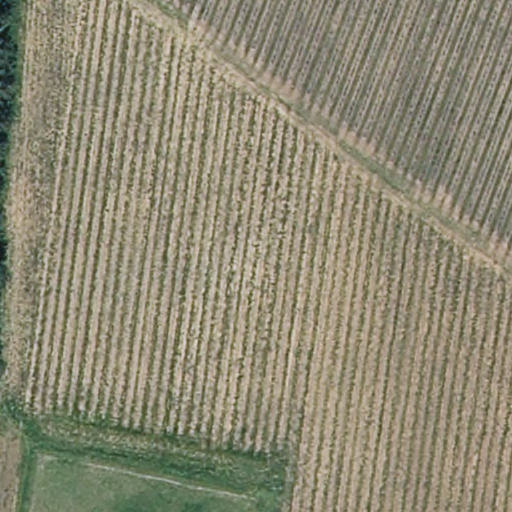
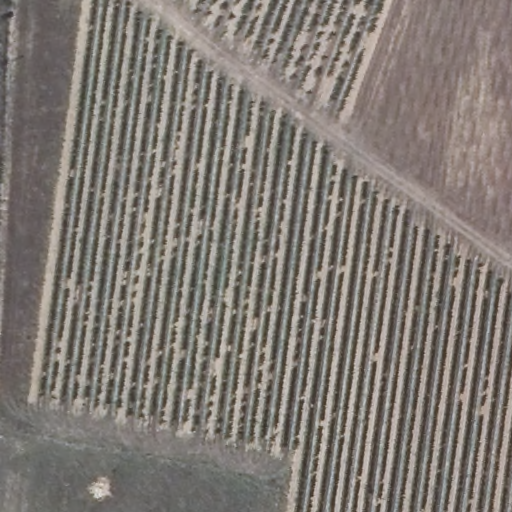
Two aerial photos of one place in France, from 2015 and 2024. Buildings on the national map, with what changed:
[]

